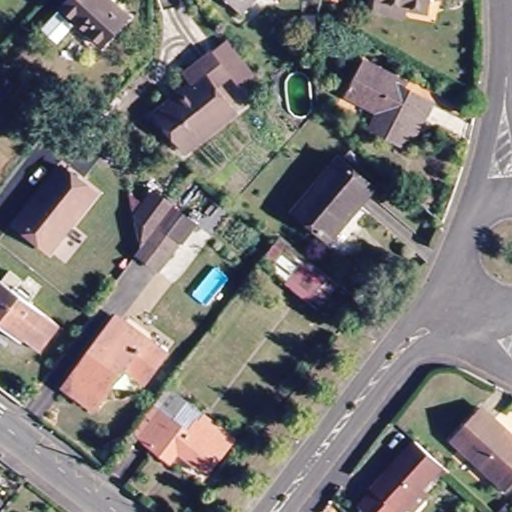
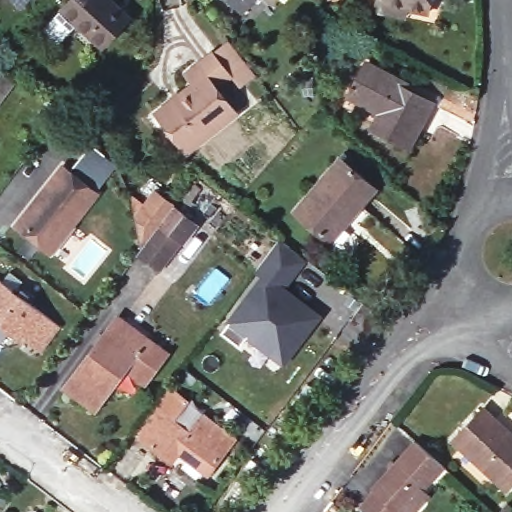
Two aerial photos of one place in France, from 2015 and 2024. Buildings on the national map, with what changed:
unchanged [(76,0),(113,0),(130,17),(104,45),(80,23),(61,43),(47,29),(66,9),(76,0)]
unchanged [(234,0),(253,0),(244,9),(234,0)]
unchanged [(370,10),(372,0),(429,0),(427,11),(410,8),(408,19),(370,10)]
unchanged [(239,107),(192,149),(159,110),(191,80),(185,73),(212,48),(234,72),(219,85),(239,107)]
unchanged [(407,142),(398,136),(371,119),(373,118),(344,99),(350,91),(370,57),(402,76),(399,81),(424,96),(433,102),(407,142)]
unchanged [(0,109),(0,78),(2,76),(17,86),(0,109)]
unchanged [(293,218),(336,163),(370,189),(327,244),(293,218)]
unchanged [(53,252),(20,226),(65,167),(99,194),(53,252)]
unchanged [(135,257),(141,249),(136,218),(139,215),(141,212),(149,203),(157,192),(175,206),(197,224),(179,247),(157,275),(135,257)]
new [(263,275),(257,270),(280,241),(307,263),(290,285),(324,315),(285,368),(245,338),(240,345),(224,333),(229,326),(225,323),(263,275)]
demolished [(282,242),(341,287),(320,313),(263,264),(282,242)]
unchanged [(44,350),(26,337),(23,342),(0,324),(0,285),(3,281),(6,284),(14,274),(26,283),(18,293),(62,327),(44,350)]
unchanged [(356,318),(369,301),(386,315),(373,332),(356,318)]
unchanged [(127,367),(93,411),(65,388),(117,320),(169,357),(150,383),(127,367)]
unchanged [(208,417),(237,440),(216,465),(188,443),(178,454),(144,426),(164,399),(179,380),(200,395),(184,415),(200,427),(208,417)]
unchanged [(452,441),(481,410),(512,439),(512,481),(503,490),(452,441)]
unchanged [(373,512),(360,498),(410,440),(435,464),(413,489),(425,501),(416,512),(373,512)]

